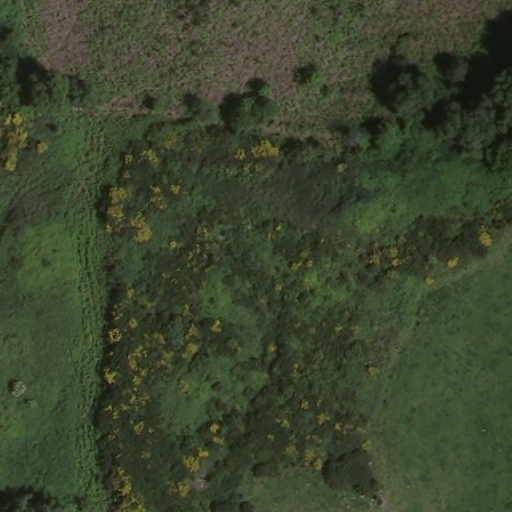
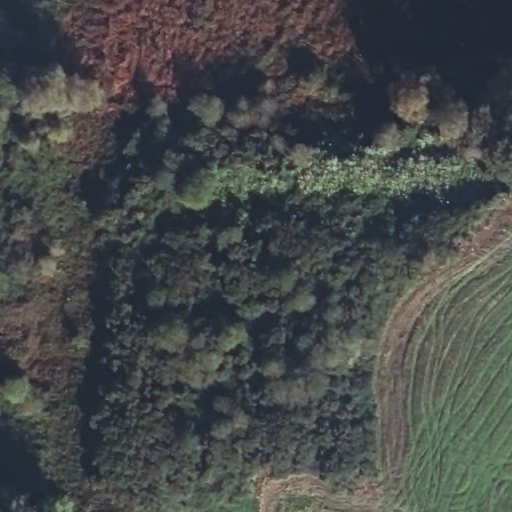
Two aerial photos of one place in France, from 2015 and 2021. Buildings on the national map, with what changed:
[]

